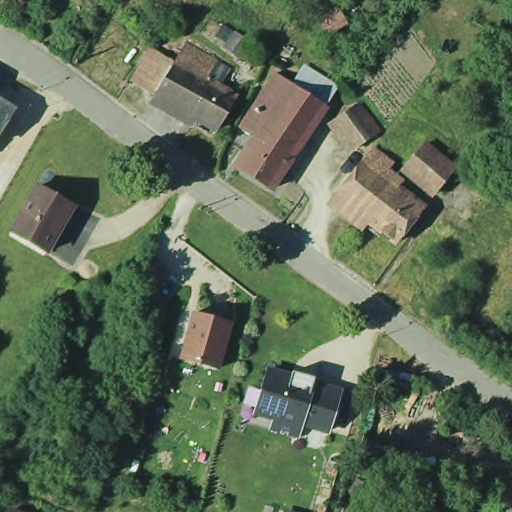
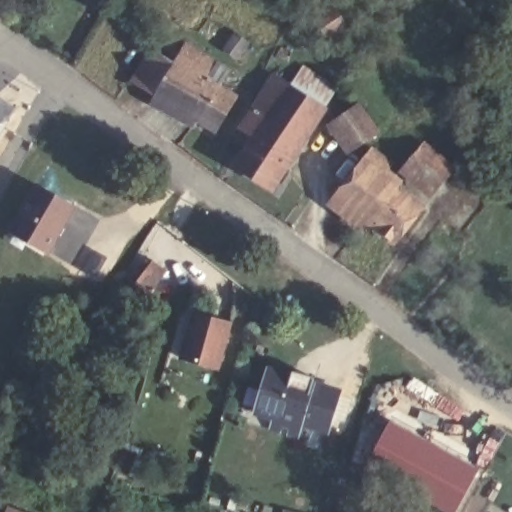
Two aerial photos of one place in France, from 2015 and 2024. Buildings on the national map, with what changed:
unchanged [(135,83),(154,51),(209,84),(190,116),(135,83)]
unchanged [(291,160),(255,138),(242,129),(276,74),(292,85),(325,108),(314,124),(303,140),(291,160)]
unchanged [(190,116),(209,84),(235,99),(216,132),(190,116)]
unchanged [(0,142),(0,102),(17,114),(0,142)]
unchanged [(353,114),(373,141),(353,156),(333,129),(353,114)]
unchanged [(255,138),(291,160),(272,189),(237,166),(255,138)]
unchanged [(450,180),(430,202),(389,166),(407,144),(450,180)]
unchanged [(333,204),(369,159),(387,173),(382,179),(392,188),(388,192),(393,196),(366,229),(333,204)]
unchanged [(40,188),(75,208),(48,253),(14,234),(40,188)]
unchanged [(393,196),(420,218),(392,251),(366,229),(393,196)]
unchanged [(195,309),(231,319),(218,364),(182,354),(195,309)]
unchanged [(327,432),(300,424),(297,436),(272,429),(276,417),(262,413),(257,412),(263,389),(268,371),(292,377),(293,372),(315,379),(313,383),(340,391),(327,432)]
new [(477,469),(455,512),(440,512),(362,473),(390,423),(477,469)]

